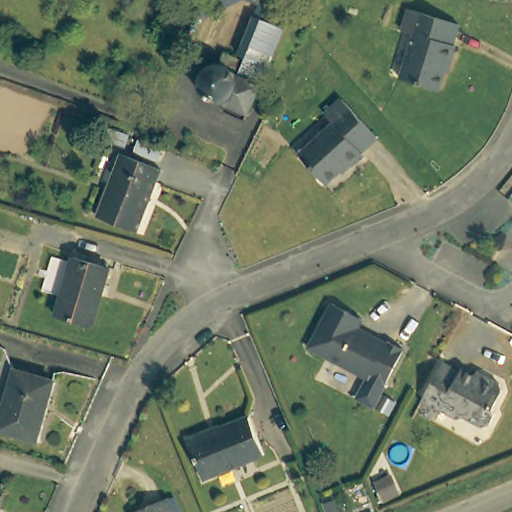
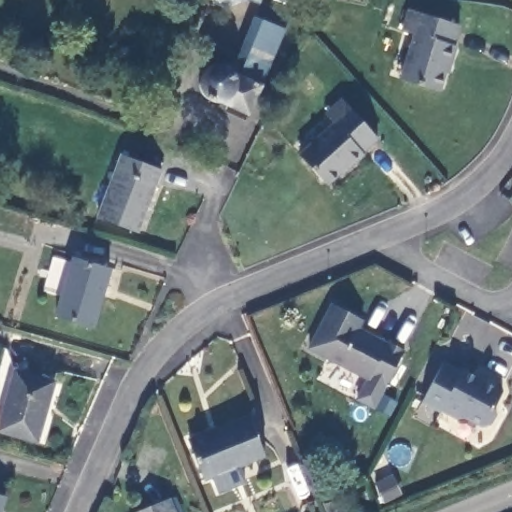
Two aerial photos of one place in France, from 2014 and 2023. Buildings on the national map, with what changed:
unchanged [(203,0),(247,0),(225,9),(203,0)]
unchanged [(248,114),(224,103),(218,104),(212,103),(207,99),(203,95),(200,90),(199,85),(199,79),(202,74),(205,69),(209,66),(215,64),(221,64),(224,55),(244,63),(246,59),(241,53),(260,5),(289,18),(248,114)]
unchanged [(453,46),(456,47),(450,65),(447,64),(438,92),(400,80),(415,36),(403,32),(409,11),(459,26),(453,46)]
unchanged [(341,100),(377,139),(362,153),(363,155),(349,168),(348,165),(326,185),(299,156),(334,125),(325,115),(341,100)]
unchanged [(159,163),(134,153),(139,140),(164,150),(159,163)]
unchanged [(98,217),(121,155),(161,170),(137,233),(98,217)]
unchanged [(109,269),(93,328),(57,318),(74,259),(109,269)]
unchanged [(363,321),(358,329),(387,344),(388,341),(405,350),(386,387),(369,378),(368,379),(309,349),(333,304),(363,321)]
unchanged [(443,364),(461,375),(462,373),(482,384),(484,379),(501,389),(503,395),(493,413),(494,419),(489,429),(481,429),(466,419),(456,421),(441,412),(439,414),(421,404),(443,364)]
unchanged [(37,443),(0,432),(0,422),(15,371),(54,382),(37,443)]
unchanged [(265,456),(205,481),(189,441),(250,417),(265,456)]
unchanged [(1,512),(0,512),(0,495),(5,497),(1,512)]
unchanged [(145,510),(169,500),(175,512),(141,512),(145,510)]
unchanged [(325,507),(339,501),(344,512),(327,512),(325,507)]

